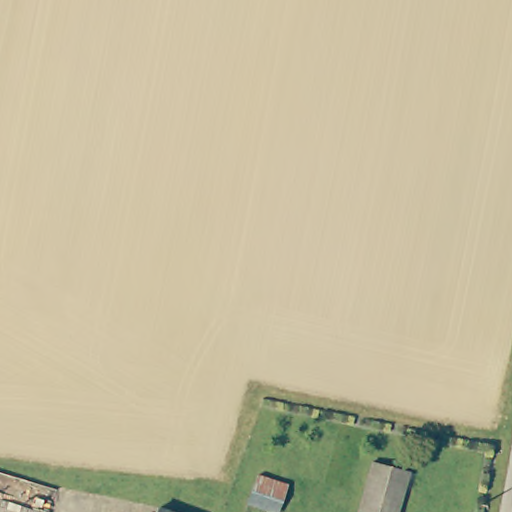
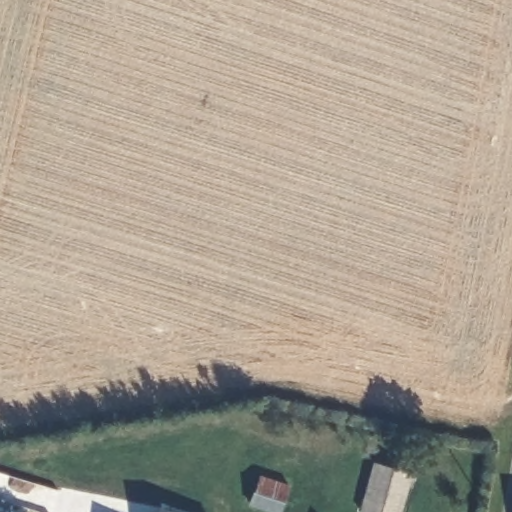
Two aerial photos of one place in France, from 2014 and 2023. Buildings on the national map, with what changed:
unchanged [(360,511),(373,462),(411,473),(400,512),(363,512),(360,511)]
unchanged [(278,512),(272,512),(249,503),(261,474),(288,486),(278,512)]
unchanged [(160,508),(171,512),(158,512),(160,508)]

